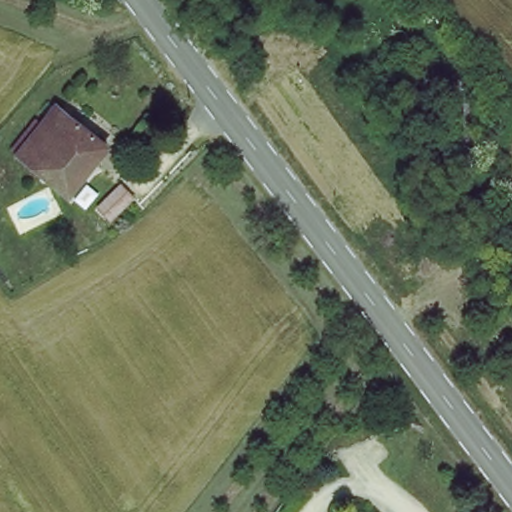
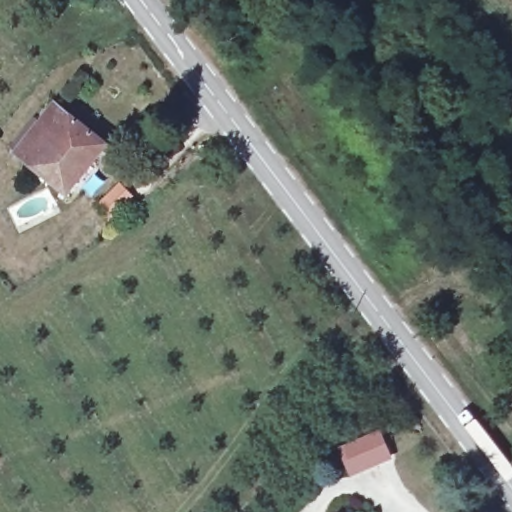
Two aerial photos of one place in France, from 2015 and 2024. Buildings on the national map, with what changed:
unchanged [(57,185),(19,160),(58,104),(107,141),(93,162),(71,195),(57,185)]
unchanged [(131,215),(116,205),(133,184),(147,195),(131,215)]
new [(376,435),(388,457),(351,474),(340,451),(376,435)]

